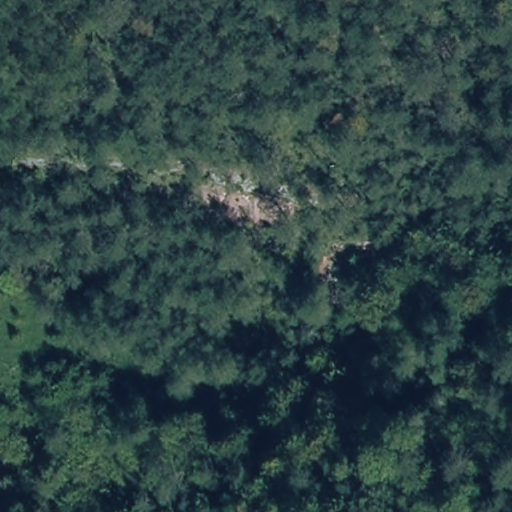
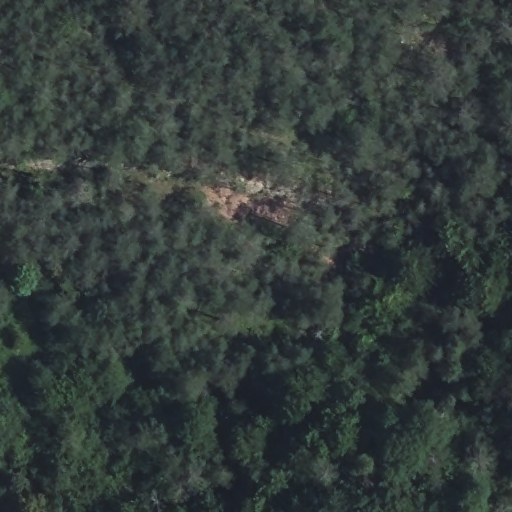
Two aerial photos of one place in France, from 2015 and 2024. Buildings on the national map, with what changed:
[]

